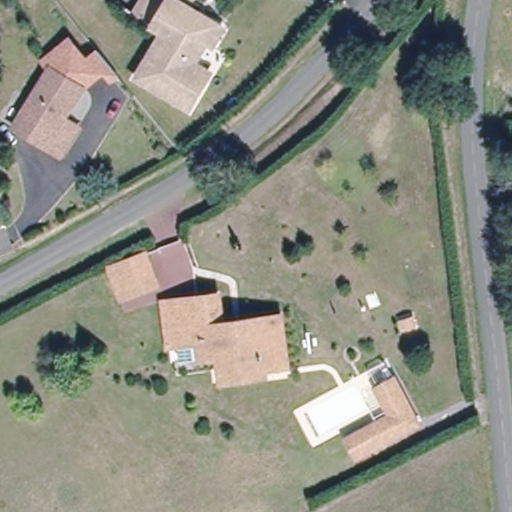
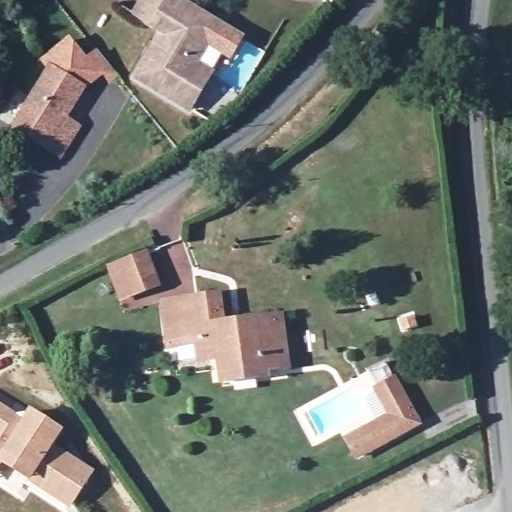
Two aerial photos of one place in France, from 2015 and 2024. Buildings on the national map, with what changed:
unchanged [(229,56),(211,45),(204,41),(190,64),(206,74),(184,114),(133,81),(159,35),(137,22),(150,0),(202,0),(196,10),(223,27),(240,37),(229,56)]
unchanged [(65,116),(79,125),(57,158),(11,128),(50,68),(44,62),(68,40),(86,57),(98,47),(110,62),(116,71),(109,77),(100,71),(84,85),(65,116)]
unchanged [(155,287),(123,296),(115,265),(146,255),(155,287)]
unchanged [(171,296),(222,293),(226,318),(287,312),(290,360),(228,366),(226,347),(224,329),(211,329),(208,336),(176,340),(171,296)]
unchanged [(350,436),(367,428),(392,415),(382,386),(400,376),(423,425),(375,447),(359,455),(350,436)]
new [(30,407),(65,427),(56,445),(94,470),(71,509),(30,483),(2,466),(0,469),(0,402),(20,415),(30,407)]

